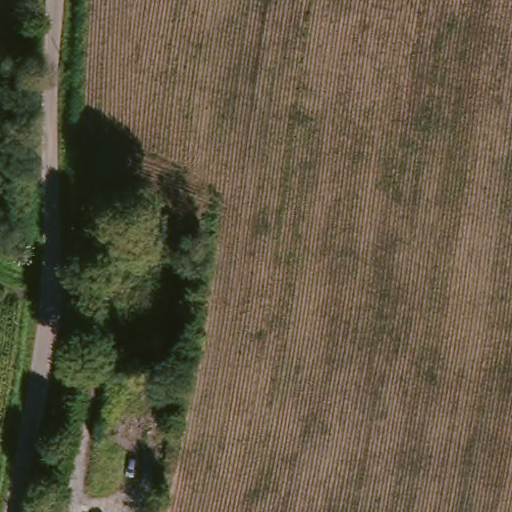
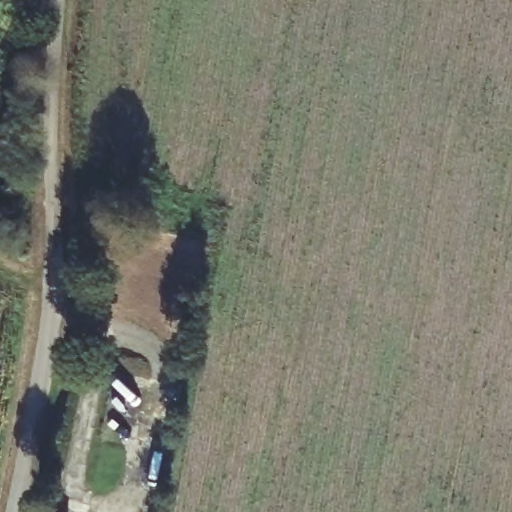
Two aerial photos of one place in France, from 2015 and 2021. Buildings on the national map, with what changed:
[]

